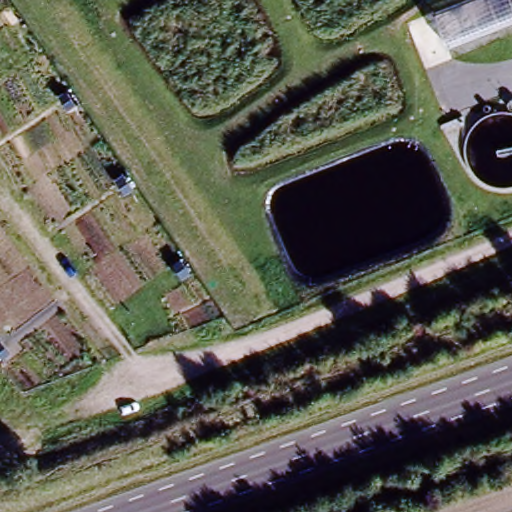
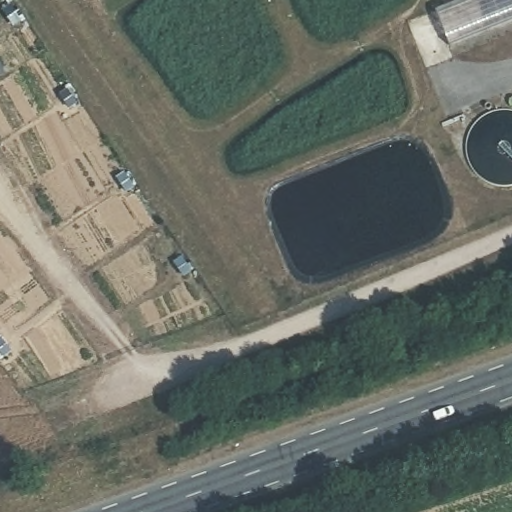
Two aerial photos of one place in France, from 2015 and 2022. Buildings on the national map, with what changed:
unchanged [(512,0),(512,22),(448,48),(433,13),(464,0),(512,0)]

